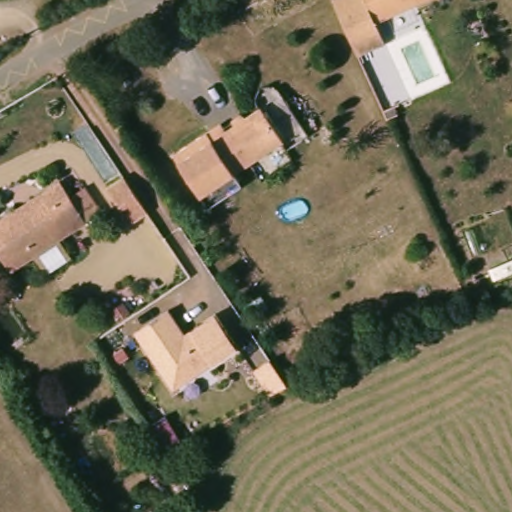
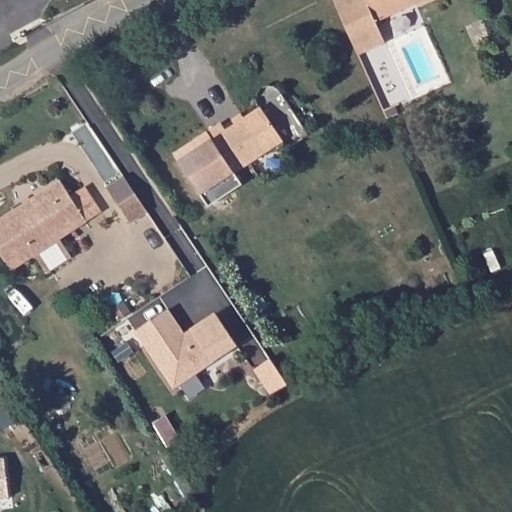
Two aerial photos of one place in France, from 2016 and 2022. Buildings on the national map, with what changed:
unchanged [(377,18),(387,38),(361,52),(335,0),(420,0),(377,18)]
unchanged [(236,174),(242,184),(209,206),(202,195),(180,159),(205,142),(200,134),(221,121),(227,129),(235,124),(232,119),(242,112),(246,116),(261,107),(285,141),(236,174)]
unchanged [(68,198),(82,188),(100,213),(85,223),(12,272),(0,256),(0,223),(16,211),(30,202),(57,183),(68,198)]
unchanged [(175,389),(135,331),(170,309),(186,333),(215,313),(238,346),(175,389)]
new [(5,457),(9,499),(0,500),(0,458),(5,457)]

